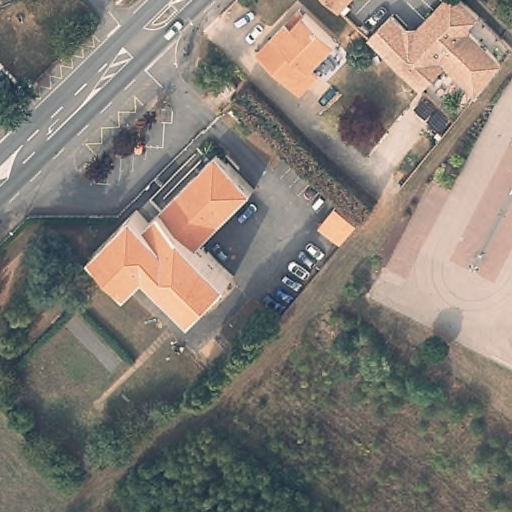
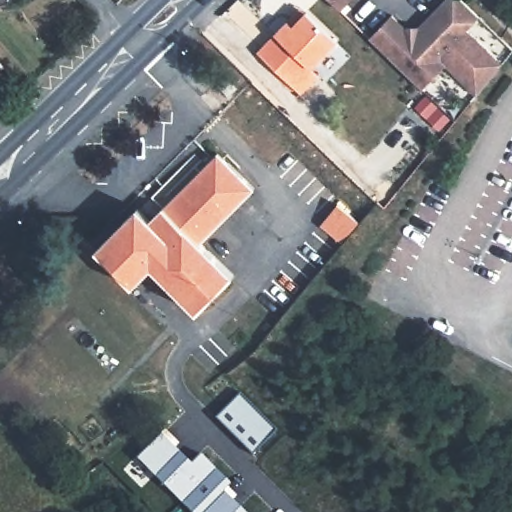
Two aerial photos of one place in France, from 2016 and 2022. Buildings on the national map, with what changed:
unchanged [(343,8),(335,0),(350,0),(343,8)]
unchanged [(405,31),(413,30),(440,0),(460,0),(472,11),(476,14),(463,28),(500,61),(480,87),(476,92),(444,64),(421,91),(372,45),(367,40),(388,16),(405,31)]
unchanged [(290,19),(294,22),(307,8),(340,39),(313,67),(321,74),(301,94),(257,52),(290,19)]
unchanged [(0,69),(0,57),(7,63),(0,69)]
unchanged [(229,76),(237,85),(227,94),(219,86),(229,76)]
unchanged [(221,151),(257,186),(200,242),(232,274),(225,281),(165,205),(221,151)]
unchanged [(358,219),(342,242),(322,223),(339,203),(358,219)]
unchanged [(225,281),(198,307),(154,262),(135,279),(100,245),(142,204),(154,216),(165,205),(225,281)]
new [(237,391),(273,427),(251,451),(214,415),(237,391)]
new [(199,451),(228,481),(221,489),(245,512),(192,512),(134,455),(160,431),(189,461),(199,451)]

